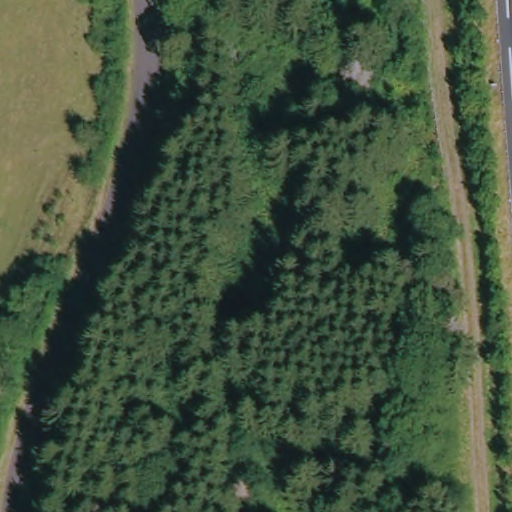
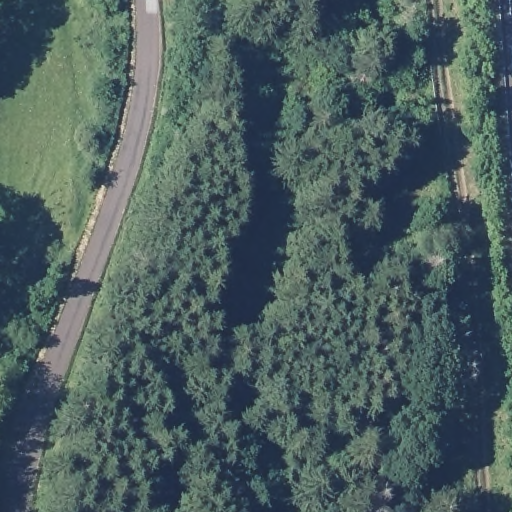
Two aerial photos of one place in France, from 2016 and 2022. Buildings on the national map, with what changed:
[]

